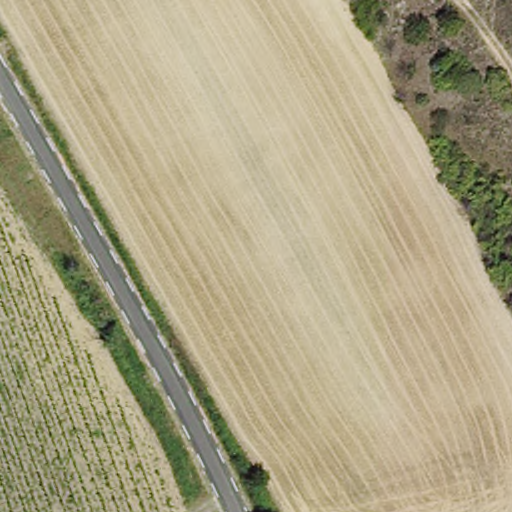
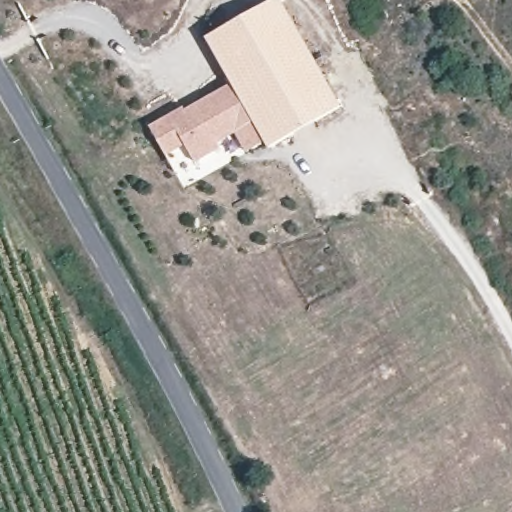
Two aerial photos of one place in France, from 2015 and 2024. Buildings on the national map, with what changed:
new [(194,161),(185,144),(166,155),(151,126),(183,107),(184,110),(231,82),(209,38),(272,0),(282,0),(342,107),(268,147),(262,139),(244,148),(236,132),(216,141),(219,149),(194,161)]

